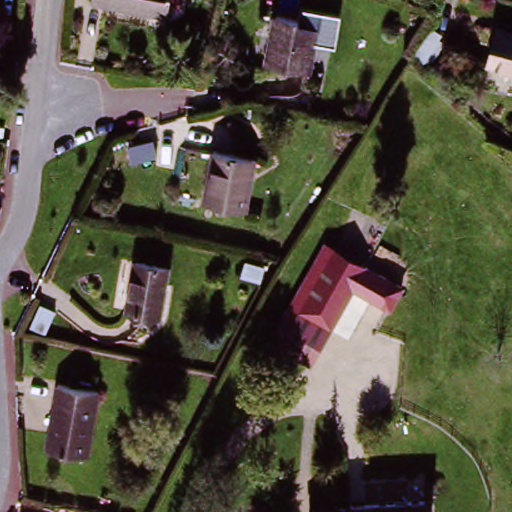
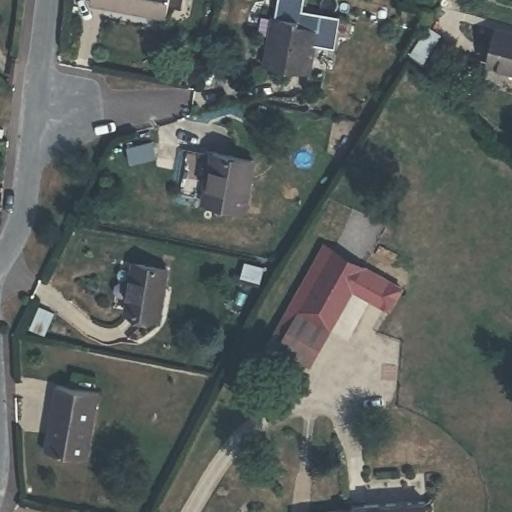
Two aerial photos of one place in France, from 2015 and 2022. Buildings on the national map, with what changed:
unchanged [(90,0),(169,0),(166,17),(90,2),(90,0)]
unchanged [(271,52),(277,54),(283,24),(323,33),(313,76),(267,67),(271,52)]
unchanged [(492,29),(512,34),(512,71),(485,65),(492,29)]
unchanged [(202,205),(208,158),(248,164),(240,209),(202,205)]
unchanged [(289,304),(323,241),(402,285),(391,311),(353,292),(330,330),(313,319),(300,310),(289,304)]
unchanged [(126,313),(136,264),(168,270),(158,320),(126,313)]
unchanged [(300,310),(330,330),(302,371),(272,353),(300,310)]
unchanged [(57,381),(98,388),(86,455),(45,447),(57,381)]
unchanged [(420,506),(420,512),(310,512),(310,511),(420,506)]

